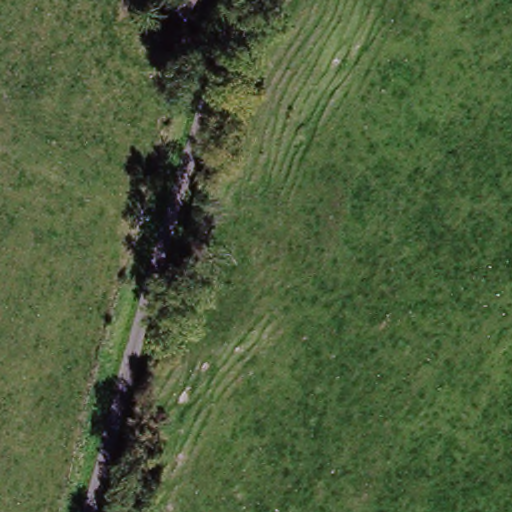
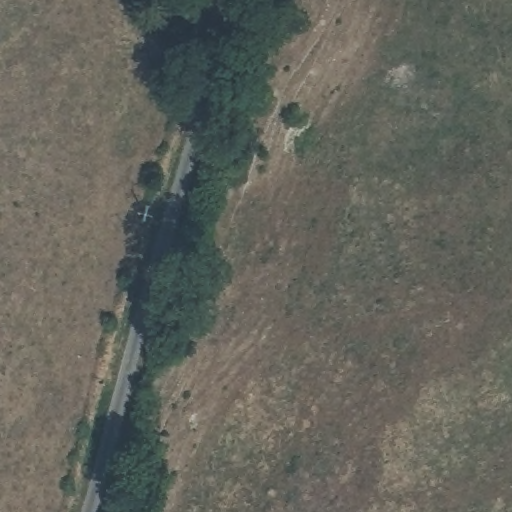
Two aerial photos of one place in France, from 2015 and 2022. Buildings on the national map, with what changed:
unchanged [(166,0),(187,0),(173,23),(157,15),(166,0)]

